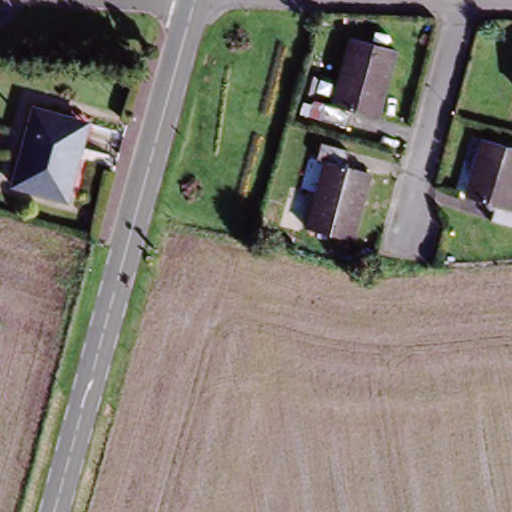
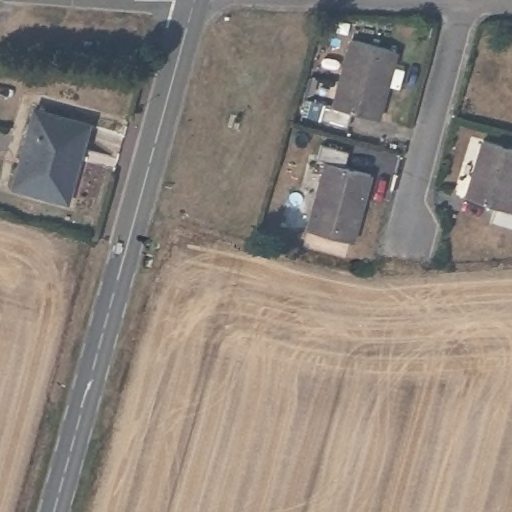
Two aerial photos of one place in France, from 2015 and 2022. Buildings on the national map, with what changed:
unchanged [(327,120),(330,107),(340,109),(359,34),(404,43),(382,120),(362,116),(357,129),(327,120)]
unchanged [(89,126),(67,205),(14,193),(36,112),(89,126)]
unchanged [(354,242),(305,230),(324,161),(312,158),(317,141),(345,148),(341,165),(372,173),(354,242)]
unchanged [(482,220),(486,204),(467,197),(480,141),(512,148),(512,227),(482,220)]

